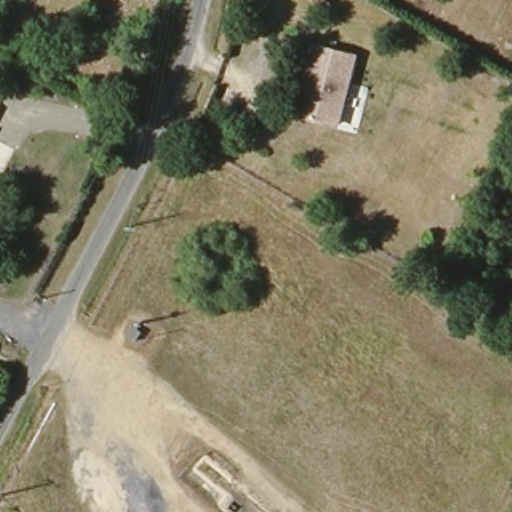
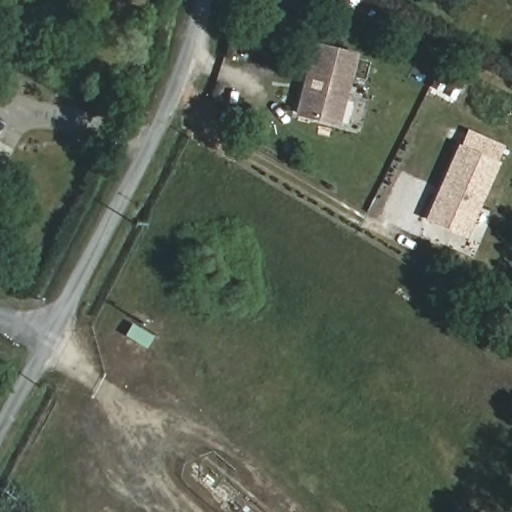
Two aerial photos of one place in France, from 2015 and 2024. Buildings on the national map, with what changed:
unchanged [(335,122),(297,111),(316,43),(354,54),(335,122)]
new [(455,146),(492,162),(460,233),(424,217),(455,146)]

